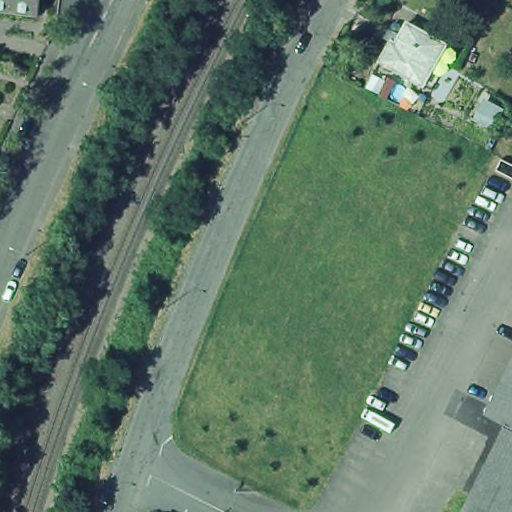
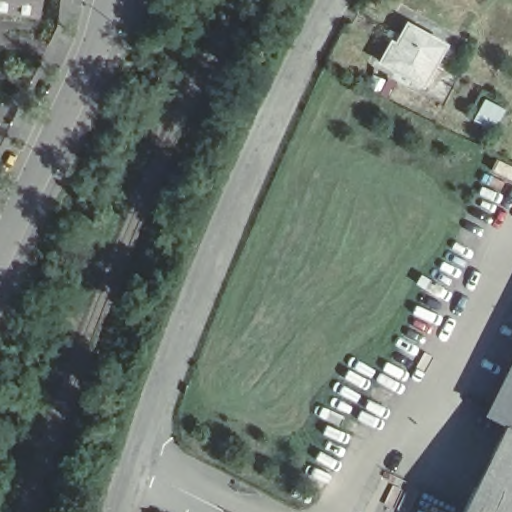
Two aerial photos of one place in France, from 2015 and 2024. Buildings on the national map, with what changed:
unchanged [(32,24),(0,20),(0,0),(34,0),(32,24)]
unchanged [(424,95),(416,91),(372,66),(384,47),(390,51),(400,32),(437,53),(445,57),(424,95)]
unchanged [(452,512),(512,393),(512,512),(452,512)]

